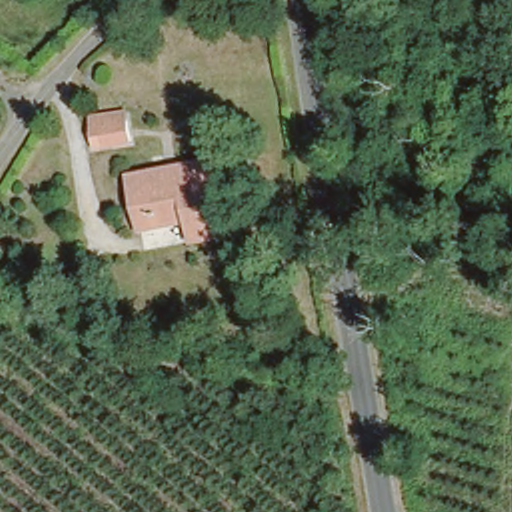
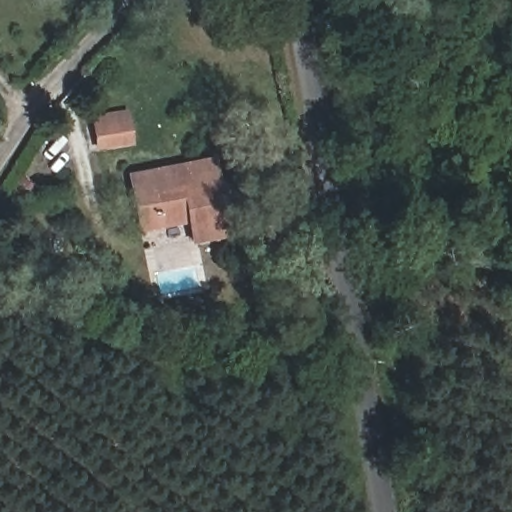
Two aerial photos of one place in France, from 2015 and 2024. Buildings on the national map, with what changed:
unchanged [(135,144),(97,150),(92,115),(130,110),(135,144)]
unchanged [(135,209),(129,176),(167,169),(216,161),(217,174),(228,235),(191,241),(187,222),(152,227),(138,230),(135,209)]

